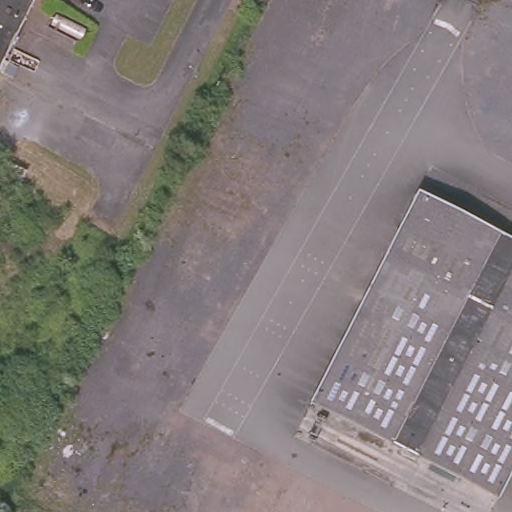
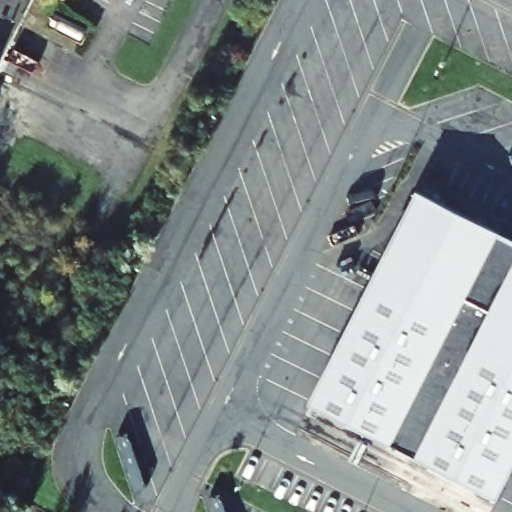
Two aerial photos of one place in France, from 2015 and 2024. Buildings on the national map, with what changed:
unchanged [(15,26),(0,56),(0,0),(28,0),(15,26)]
unchanged [(414,192),(512,242),(512,459),(493,497),(307,403),(414,192)]

